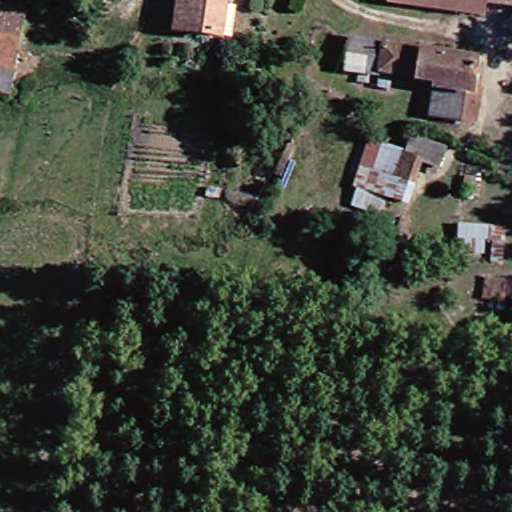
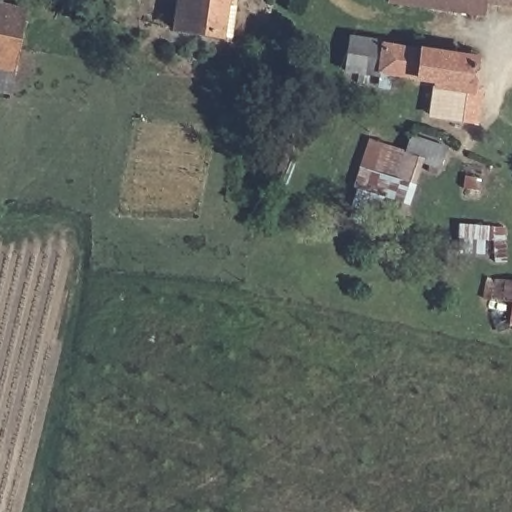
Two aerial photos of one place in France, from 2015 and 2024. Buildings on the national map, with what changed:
unchanged [(40,10),(43,0),(63,0),(65,0),(61,16),(40,10)]
unchanged [(172,40),(175,0),(219,0),(216,43),(172,40)]
unchanged [(472,2),(471,15),(380,0),(504,0),(503,6),(472,2)]
unchanged [(504,0),(512,0),(512,8),(503,6),(504,0)]
unchanged [(15,16),(5,76),(0,76),(0,14),(15,16)]
unchanged [(467,91),(475,92),(470,126),(427,119),(430,93),(424,92),(426,85),(345,72),(349,40),(471,62),(467,91)]
unchanged [(5,76),(2,101),(0,101),(0,76),(5,76)]
unchanged [(405,136),(437,145),(433,166),(412,160),(406,182),(391,178),(400,152),(405,136)]
unchanged [(391,178),(406,182),(400,201),(383,197),(378,214),(347,203),(352,186),(348,185),(355,165),(379,174),(386,149),(400,152),(391,178)]
unchanged [(467,194),(451,190),(455,174),(471,177),(467,194)]
unchanged [(504,302),(475,300),(476,283),(511,285),(512,286),(512,331),(503,331),(504,302)]

